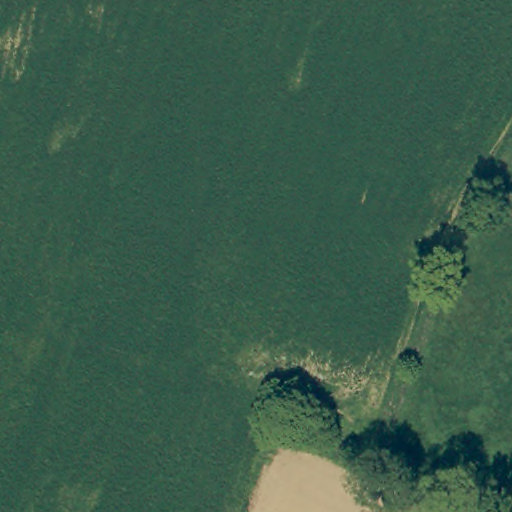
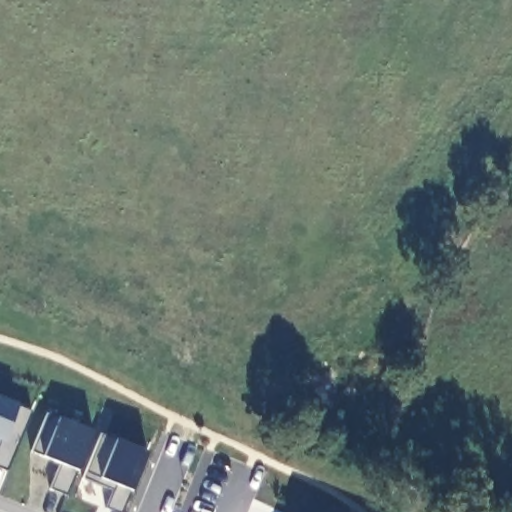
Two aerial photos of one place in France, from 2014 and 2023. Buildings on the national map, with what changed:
new [(0,469),(0,446),(2,442),(0,441),(0,397),(18,404),(31,412),(7,472),(0,469)]
new [(60,417),(92,431),(77,471),(67,496),(51,489),(60,464),(42,457),(33,452),(49,414),(60,417)]
new [(122,512),(114,512),(106,509),(114,490),(84,478),(102,433),(116,438),(149,452),(122,512)]

